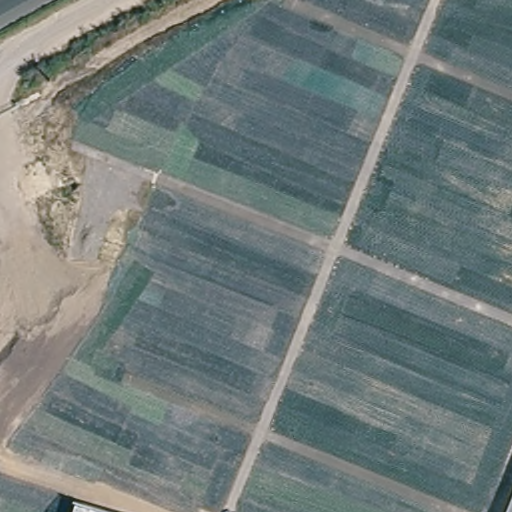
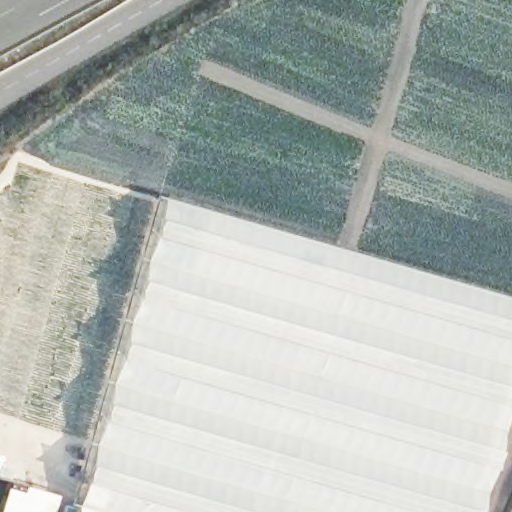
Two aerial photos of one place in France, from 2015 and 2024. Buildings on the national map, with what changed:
new [(163,200),(512,301),(512,407),(482,512),(86,512),(73,508),(163,200)]
new [(0,512),(9,483),(56,498),(52,512),(0,512)]
unchanged [(512,497),(512,512),(506,512),(512,497)]
unchanged [(73,508),(86,512),(71,512),(73,508)]

